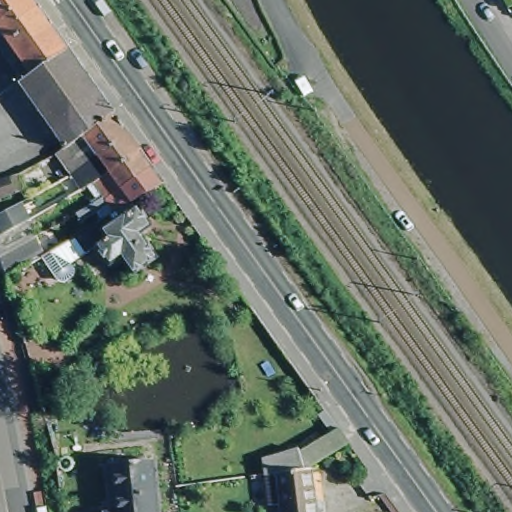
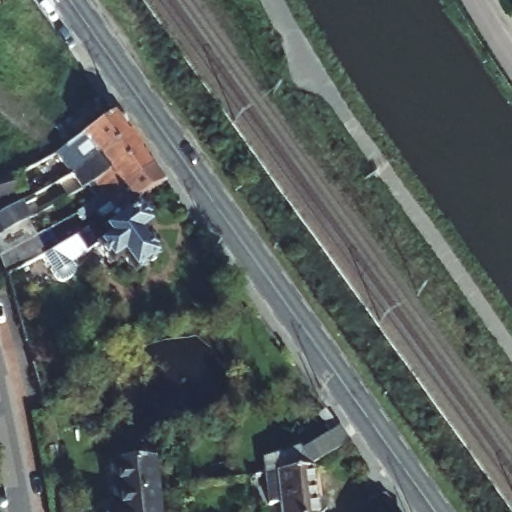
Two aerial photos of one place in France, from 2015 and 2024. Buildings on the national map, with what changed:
demolished [(32,0),(111,114),(62,147),(18,82),(30,74),(0,30),(0,0),(32,0)]
unchanged [(65,171),(53,154),(62,147),(111,114),(115,119),(125,133),(65,171)]
unchanged [(76,187),(65,171),(125,133),(137,151),(82,184),(76,187)]
unchanged [(82,184),(137,151),(148,167),(93,201),(82,184)]
unchanged [(33,162),(38,180),(16,191),(36,235),(47,231),(54,248),(0,274),(0,175),(33,162)]
unchanged [(114,219),(131,208),(144,228),(131,236),(147,260),(122,277),(110,259),(99,266),(88,249),(82,253),(70,236),(77,232),(98,220),(93,214),(79,222),(73,213),(93,201),(148,167),(160,184),(144,193),(107,215),(114,222),(115,221),(114,219)]
unchanged [(277,501),(266,502),(263,476),(262,476),(260,456),(297,445),(299,452),(338,432),(347,445),(315,461),(296,472),(310,471),(315,512),(278,512),(277,501)]
unchanged [(151,459),(157,512),(103,512),(103,511),(113,510),(107,464),(151,459)]

